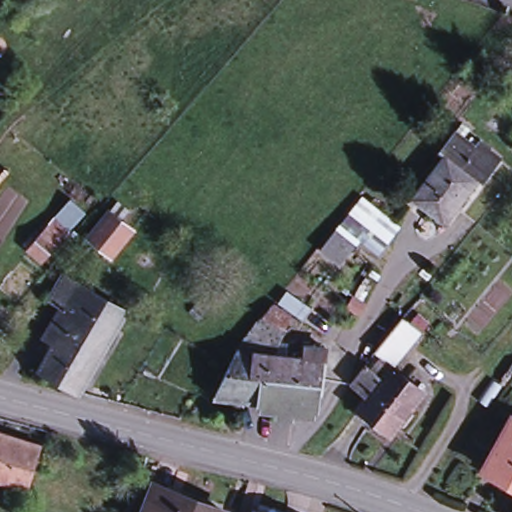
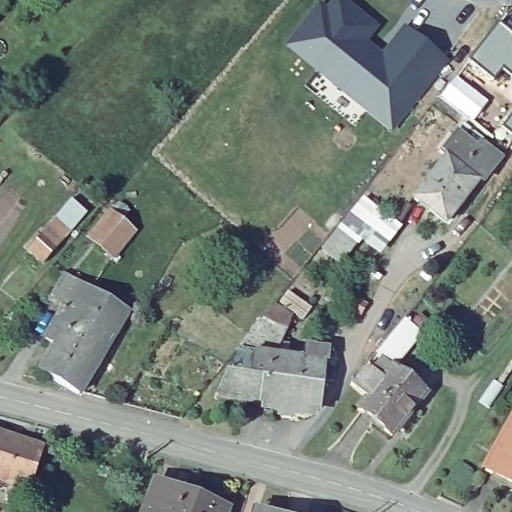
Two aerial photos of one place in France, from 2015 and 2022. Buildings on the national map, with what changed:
new [(327,6),(332,0),(348,0),(380,26),(370,40),(384,51),(404,26),(449,60),(392,131),(285,46),(321,1),(327,6)]
new [(512,29),(512,73),(504,66),(495,78),(472,58),(500,20),(512,29)]
new [(457,77),(488,101),(473,121),(442,96),(457,77)]
new [(512,114),(512,134),(502,126),(512,114)]
unchanged [(435,150),(450,130),(470,145),(475,140),(493,154),(474,178),(441,154),(435,150)]
unchanged [(474,178),(442,220),(409,196),(441,154),(474,178)]
unchanged [(364,195),(382,209),(341,265),(320,247),(364,195)]
unchanged [(110,202),(139,227),(116,259),(89,236),(110,202)]
unchanged [(59,347),(48,341),(65,311),(50,303),(67,276),(80,284),(91,291),(76,317),(114,340),(82,394),(80,396),(73,391),(44,374),(59,347)]
unchanged [(129,313),(114,340),(76,317),(91,291),(129,313)]
unchanged [(288,340),(295,341),(293,349),(311,351),(312,341),(333,343),(332,355),(327,355),(320,403),(297,400),(295,410),(285,408),(285,398),(267,396),(253,395),(219,390),(244,342),(242,341),(267,310),(291,322),(282,347),(287,348),(288,340)]
unchanged [(366,362),(367,361),(375,350),(402,315),(422,330),(395,365),(427,390),(394,433),(359,407),(368,395),(352,383),(367,363),(366,362)]
unchanged [(512,426),(512,485),(487,471),(512,426)]
unchanged [(11,433),(45,445),(31,488),(0,477),(0,430),(11,433)]
unchanged [(223,507),(221,512),(143,512),(154,482),(223,507)]
unchanged [(270,512),(257,512),(259,508),(270,512)]

